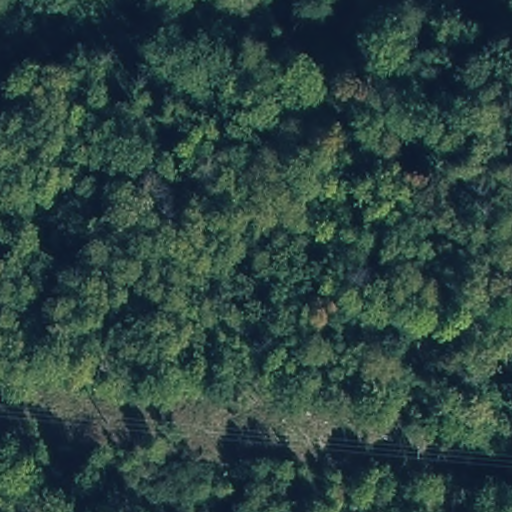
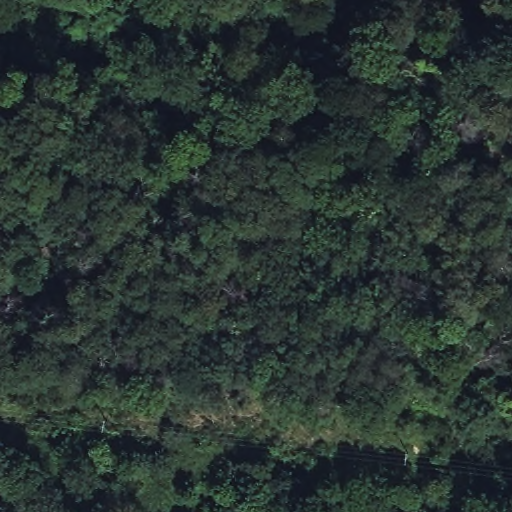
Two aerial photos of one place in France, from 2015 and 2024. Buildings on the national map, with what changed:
[]

